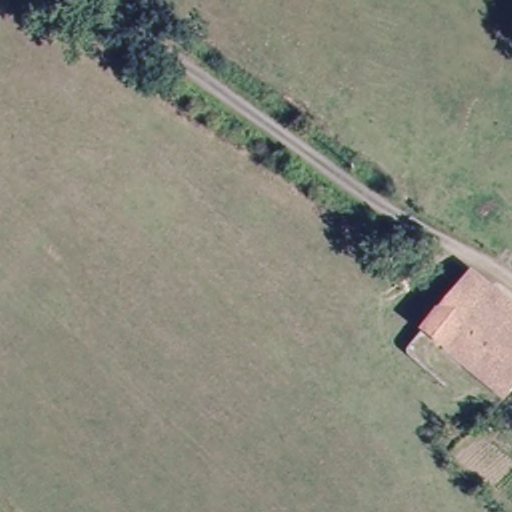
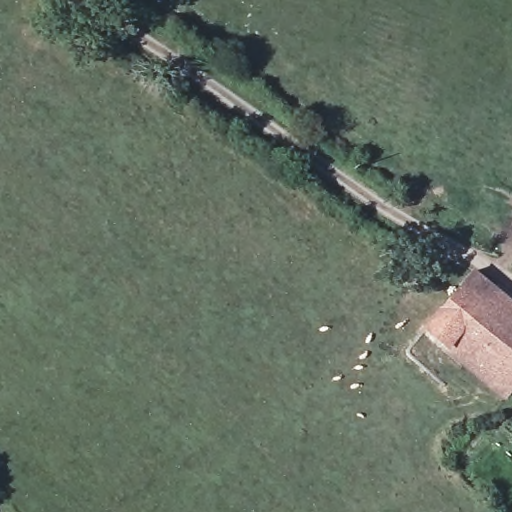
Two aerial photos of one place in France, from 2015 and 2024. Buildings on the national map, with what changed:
unchanged [(512,304),(512,374),(510,375),(512,378),(512,382),(501,389),(420,324),(455,286),(471,267),(512,304)]

